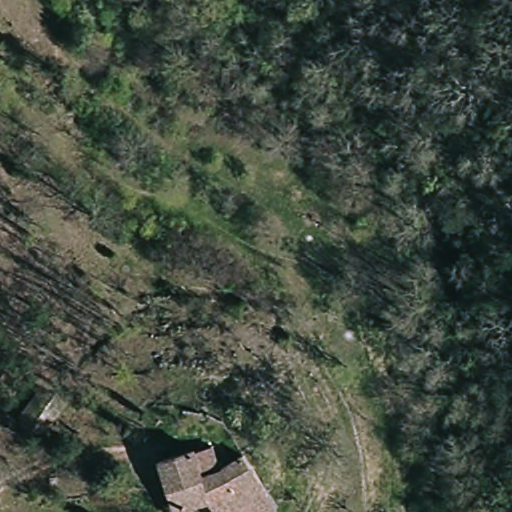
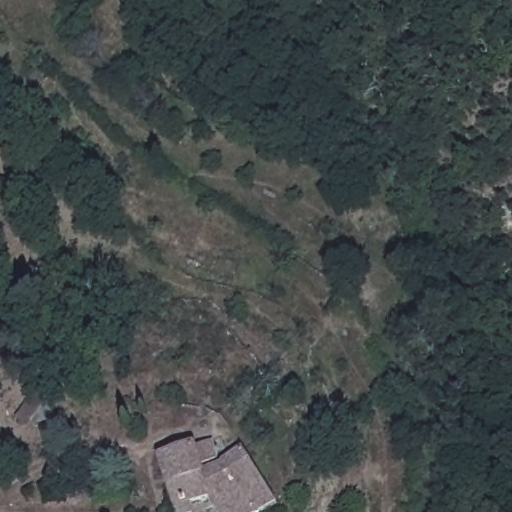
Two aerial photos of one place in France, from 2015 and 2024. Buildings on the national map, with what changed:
unchanged [(161,459),(196,448),(204,465),(226,461),(233,474),(254,467),(275,510),(271,512),(218,512),(211,496),(189,502),(192,512),(175,512),(169,488),(161,459)]

